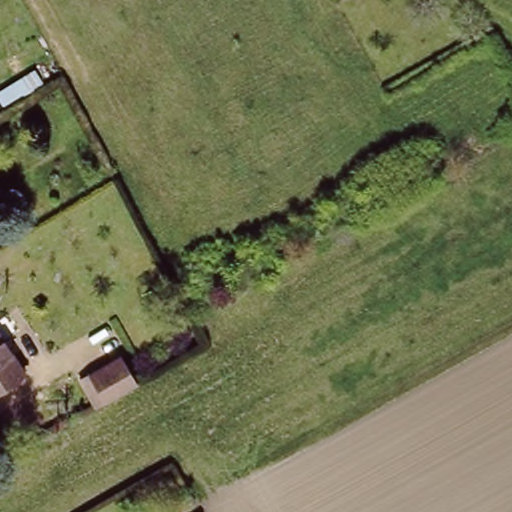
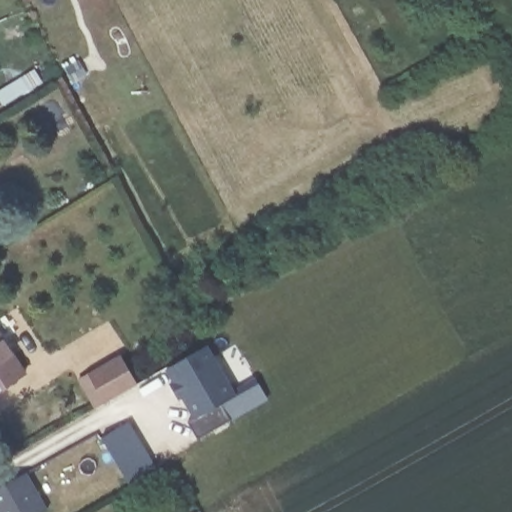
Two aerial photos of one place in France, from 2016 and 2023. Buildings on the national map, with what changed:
unchanged [(0,390),(0,324),(30,370),(0,390)]
new [(206,345),(235,394),(221,402),(231,418),(197,438),(187,421),(194,416),(182,395),(178,397),(169,382),(174,380),(166,367),(206,345)]
unchanged [(89,371),(92,372),(123,356),(138,383),(97,407),(79,377),(89,371)]
new [(129,424),(155,467),(129,482),(104,439),(129,424)]

